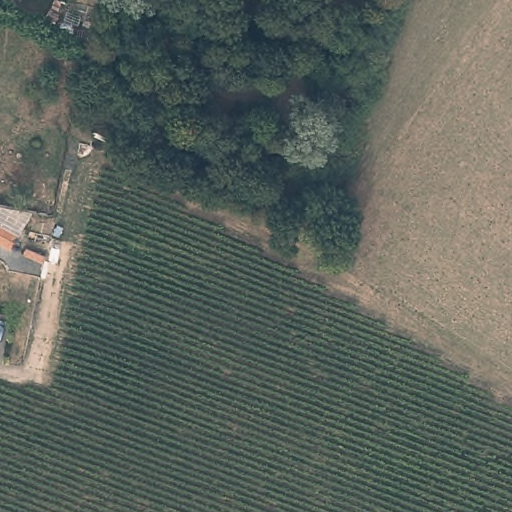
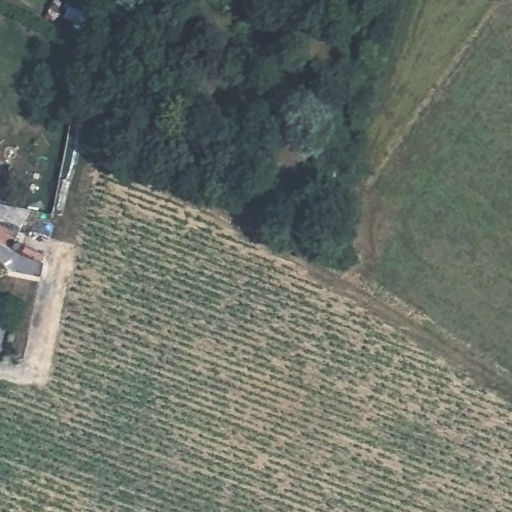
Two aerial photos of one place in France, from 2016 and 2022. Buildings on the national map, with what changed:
unchanged [(0,241),(0,224),(15,234),(5,244),(0,241)]

